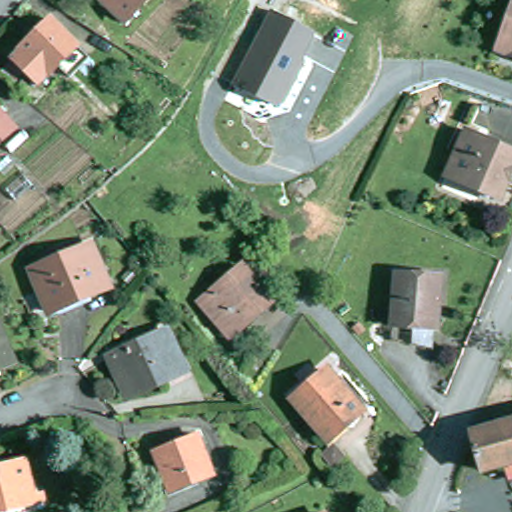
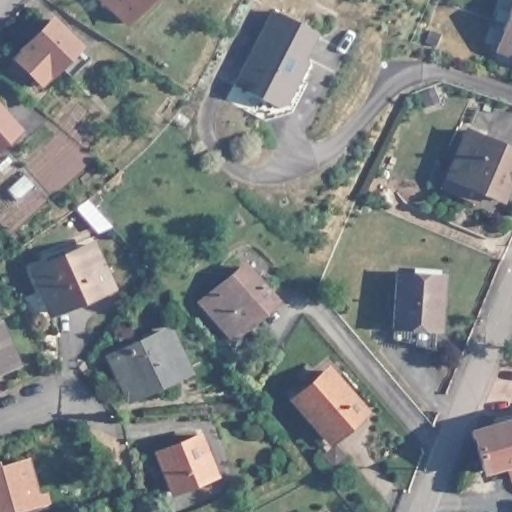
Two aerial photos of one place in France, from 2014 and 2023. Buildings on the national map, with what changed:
unchanged [(133,29),(106,4),(110,0),(159,0),(133,29)]
unchanged [(321,28),(284,107),(234,84),(274,6),(321,28)]
unchanged [(76,46),(36,86),(10,62),(50,20),(76,46)]
unchanged [(512,23),(512,61),(500,57),(512,23)]
unchanged [(429,37),(426,43),(415,40),(418,35),(429,37)]
unchanged [(0,96),(24,123),(0,144),(0,96)]
unchanged [(512,174),(501,200),(484,193),(479,204),(448,191),(472,133),(512,150),(512,174)]
unchanged [(95,248),(115,290),(56,316),(36,273),(95,248)]
unchanged [(446,275),(444,306),(441,306),(440,329),(420,329),(419,341),(398,340),(401,274),(446,275)]
unchanged [(278,307),(237,344),(207,311),(250,275),(278,307)]
unchanged [(17,365),(0,372),(0,326),(17,365)]
unchanged [(168,336),(183,372),(127,396),(112,361),(168,336)]
unchanged [(367,414),(335,444),(299,402),(331,373),(367,414)]
unchanged [(476,439),(512,428),(512,470),(488,478),(476,439)]
unchanged [(206,441),(223,481),(180,498),(164,458),(206,441)]
unchanged [(26,459),(40,494),(44,493),(49,503),(44,505),(41,501),(12,512),(0,512),(0,467),(26,459)]

